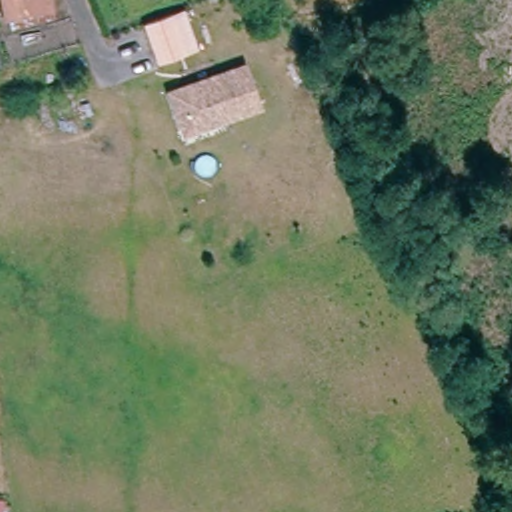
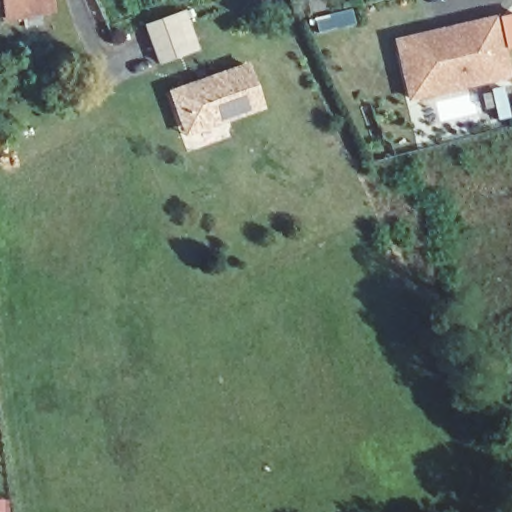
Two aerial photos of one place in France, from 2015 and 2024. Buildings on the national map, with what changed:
unchanged [(45,0),(48,16),(13,24),(4,26),(0,7),(0,0),(45,0)]
unchanged [(200,51),(159,66),(144,26),(186,10),(200,51)]
new [(431,36),(432,41),(465,33),(464,28),(496,21),(509,77),(471,86),(467,71),(436,79),(439,94),(411,100),(398,44),(431,36)]
unchanged [(166,94),(172,92),(242,67),(257,110),(223,122),(181,137),(166,94)]
new [(10,500),(10,512),(0,512),(0,499),(10,500)]

